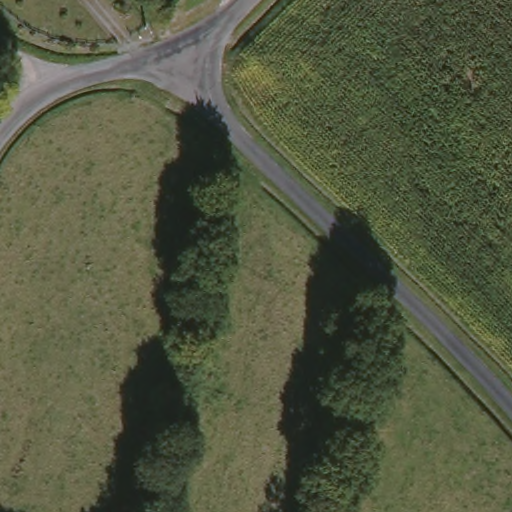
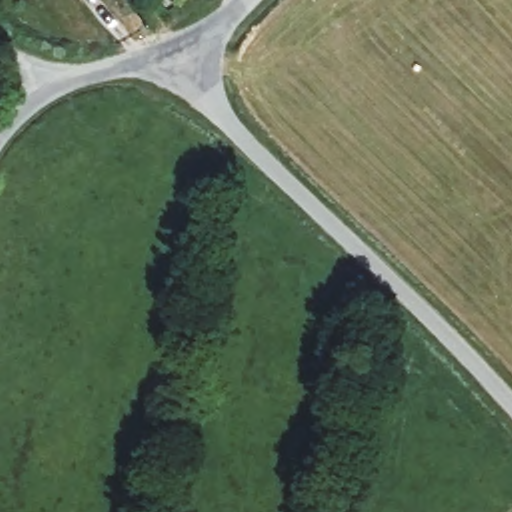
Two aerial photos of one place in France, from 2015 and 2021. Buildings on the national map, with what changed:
[]

